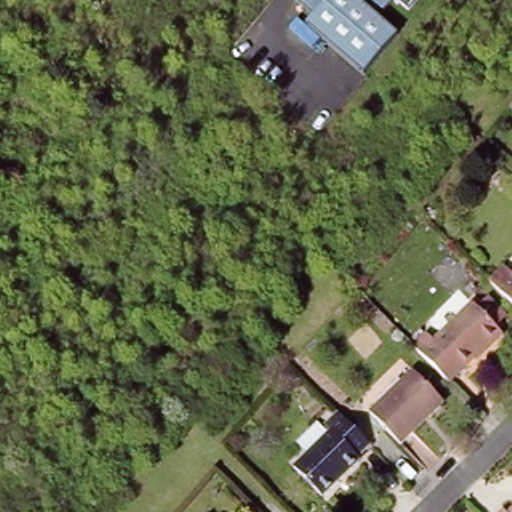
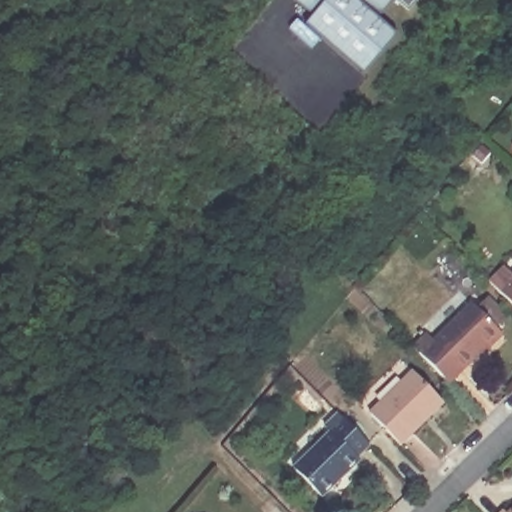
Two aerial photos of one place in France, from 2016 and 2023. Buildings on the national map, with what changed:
unchanged [(296,0),(392,0),(395,2),(379,22),(397,38),(362,78),(305,28),(312,20),(293,3),(296,0)]
unchanged [(409,14),(395,2),(392,0),(421,0),(409,14)]
unchanged [(505,271),(512,280),(512,310),(489,286),(505,271)]
unchanged [(424,339),(432,346),(471,308),(499,336),(445,388),(410,352),(424,339)]
unchanged [(412,373),(446,406),(402,449),(370,416),(412,373)]
unchanged [(365,444),(354,456),(357,459),(320,496),(292,467),(328,430),(322,424),(335,412),(365,444)]
unchanged [(504,512),(502,512),(504,511),(504,512)]

